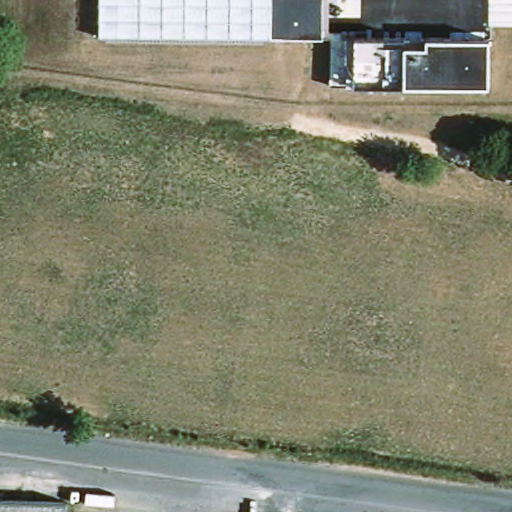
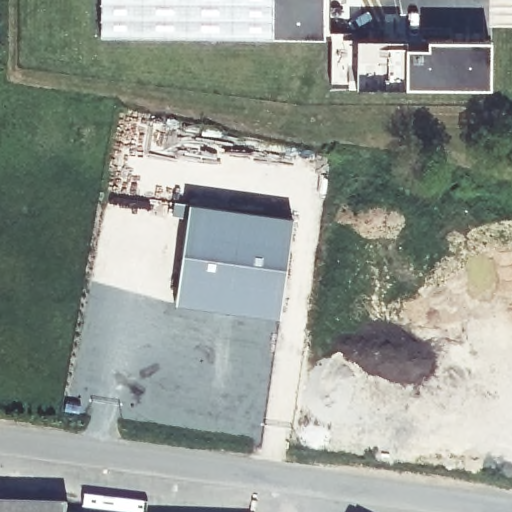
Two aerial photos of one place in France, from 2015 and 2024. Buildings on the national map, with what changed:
unchanged [(324,37),(100,36),(100,0),(323,0),(324,37)]
unchanged [(490,37),(490,88),(327,86),(330,37),(490,37)]
new [(175,303),(189,204),(291,218),(277,317),(175,303)]
unchanged [(67,512),(0,512),(0,501),(67,503),(67,512)]

